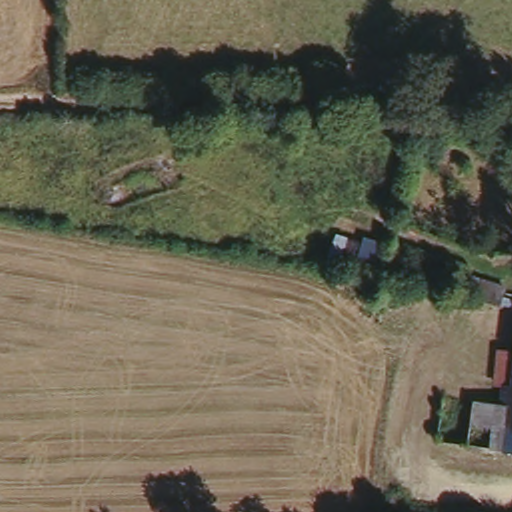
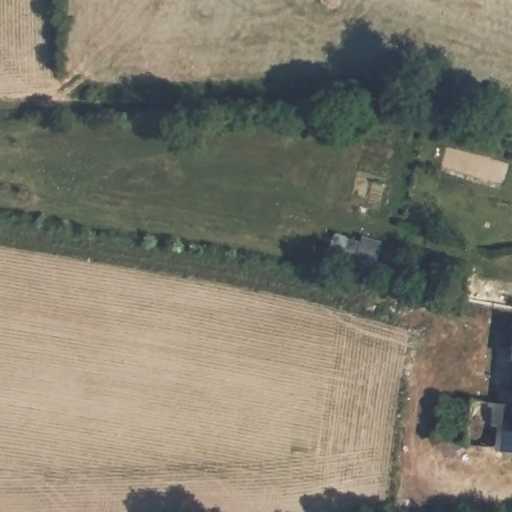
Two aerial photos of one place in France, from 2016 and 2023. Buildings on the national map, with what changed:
unchanged [(498,302),(497,310),(479,307),(481,298),(498,302)]
unchanged [(500,398),(504,382),(497,380),(504,350),(512,351),(512,449),(498,446),(486,444),(474,441),(484,393),(486,394),(500,398)]

